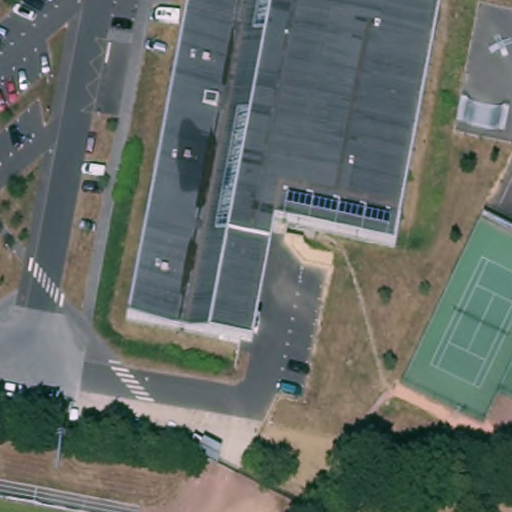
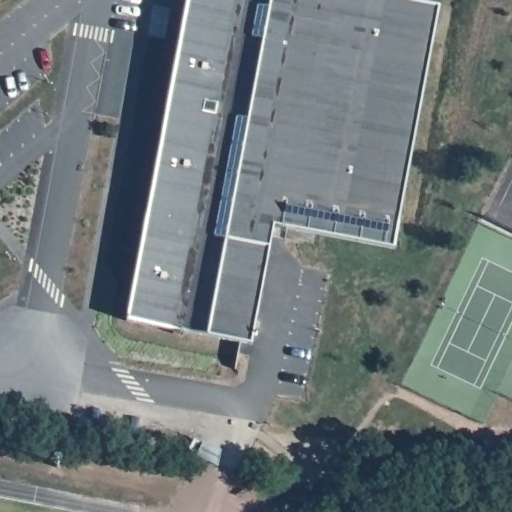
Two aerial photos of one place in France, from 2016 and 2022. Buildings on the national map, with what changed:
unchanged [(252,340),(131,320),(189,0),(412,0),(439,5),(395,246),(277,224),(252,340)]

